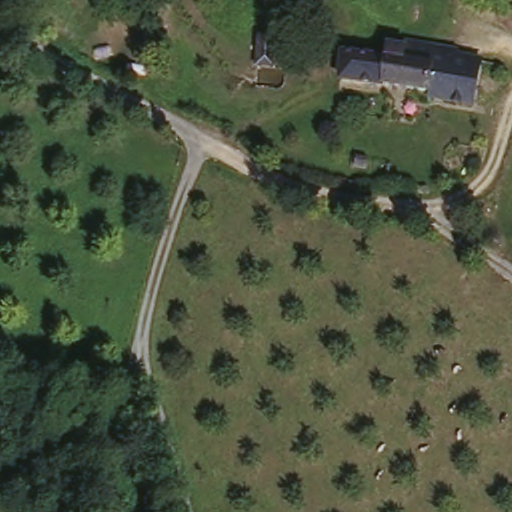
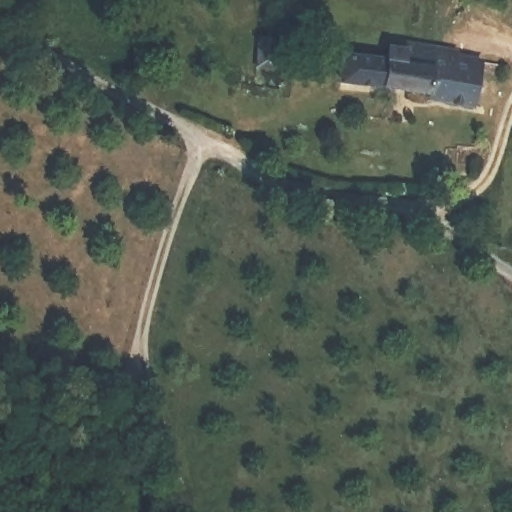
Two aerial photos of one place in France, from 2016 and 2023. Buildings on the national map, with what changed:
unchanged [(257,61),(263,39),(280,43),(275,65),(273,71),(256,68),(257,61)]
unchanged [(385,86),(340,81),(344,54),(388,58),(390,45),(406,47),(407,41),(437,46),(433,66),(429,94),(385,86)]
unchanged [(433,66),(437,46),(460,50),(459,56),(485,59),(476,106),(428,100),(429,94),(433,66)]

